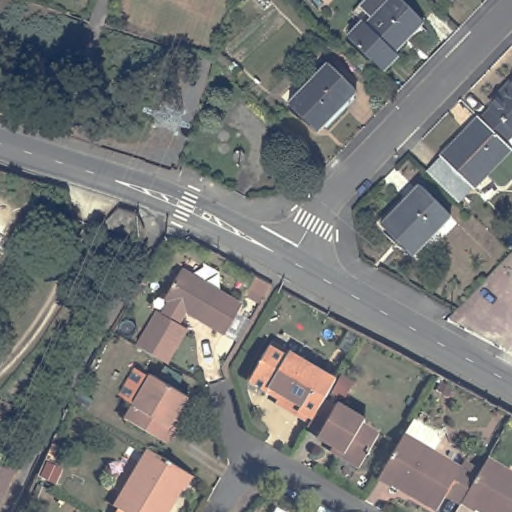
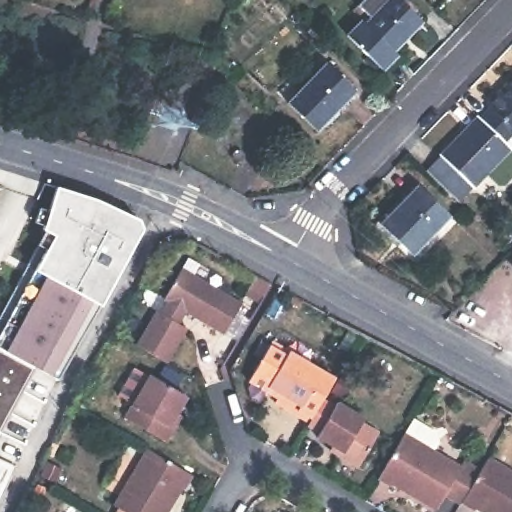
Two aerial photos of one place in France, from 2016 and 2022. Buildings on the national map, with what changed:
unchanged [(368,25),(392,0),(403,0),(426,23),(398,52),(401,56),(386,71),(350,37),(365,21),(368,25)]
unchanged [(458,0),(461,0),(460,1),(458,0)]
unchanged [(335,65),(364,93),(325,133),(296,105),(335,65)]
unchanged [(495,110),(492,107),(512,86),(512,136),(506,143),(485,121),(495,110)]
unchanged [(485,121),(506,143),(512,149),(512,154),(477,189),(445,156),(482,119),(485,121)]
unchanged [(421,186),(452,217),(415,257),(383,225),(421,186)]
new [(140,217),(143,227),(60,380),(35,367),(0,432),(0,317),(44,234),(58,187),(99,200),(140,217)]
unchanged [(159,312),(163,315),(170,303),(165,300),(182,270),(242,305),(225,335),(187,313),(180,324),(190,330),(168,365),(137,347),(159,312)]
unchanged [(275,342),(337,379),(324,402),(311,423),(277,402),(282,393),(272,387),(269,392),(251,381),(275,342)]
unchanged [(152,377),(188,399),(171,427),(175,430),(167,444),(126,420),(152,377)]
unchanged [(311,423),(324,402),(336,409),(338,404),(365,420),(362,425),(380,435),(360,468),(340,456),(343,452),(317,437),(320,433),(308,427),(311,423)]
unchanged [(406,435),(407,434),(410,429),(415,420),(436,432),(441,442),(435,451),(462,467),(466,460),(482,470),(463,503),(462,505),(448,496),(439,511),(414,497),(416,493),(397,482),(395,488),(380,479),(395,455),(406,435)]
unchanged [(120,501),(154,445),(199,472),(191,486),(185,483),(174,500),(179,503),(173,512),(121,512),(125,505),(120,501)]
unchanged [(0,508),(0,457),(21,467),(0,508)]
unchanged [(482,470),(489,459),(512,472),(512,512),(493,512),(481,506),(478,512),(463,503),(482,470)]

